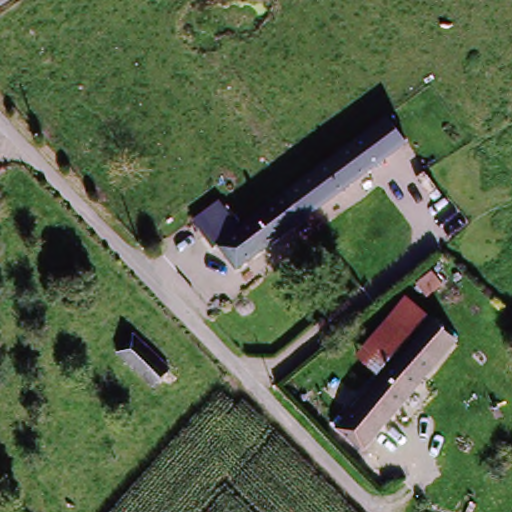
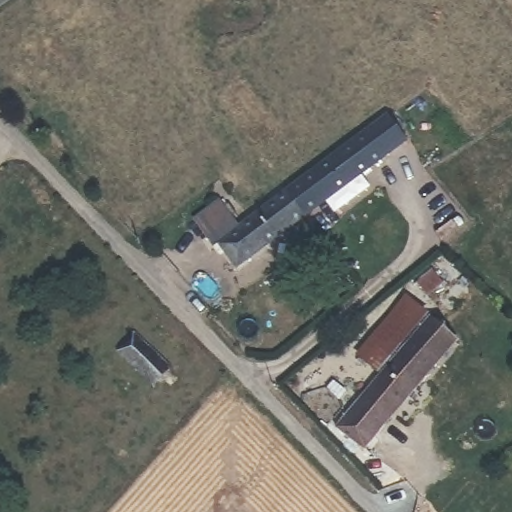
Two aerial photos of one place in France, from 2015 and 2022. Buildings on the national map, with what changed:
unchanged [(297,184),(388,115),(406,144),(318,210),(297,184)]
unchanged [(189,220),(221,198),(238,226),(295,181),(321,212),(237,280),(189,220)]
unchanged [(406,296),(438,323),(385,385),(353,357),(406,296)]
unchanged [(351,422),(385,385),(438,323),(459,343),(374,442),(362,456),(340,435),(351,422)]
unchanged [(133,329),(170,363),(156,377),(120,342),(133,329)]

